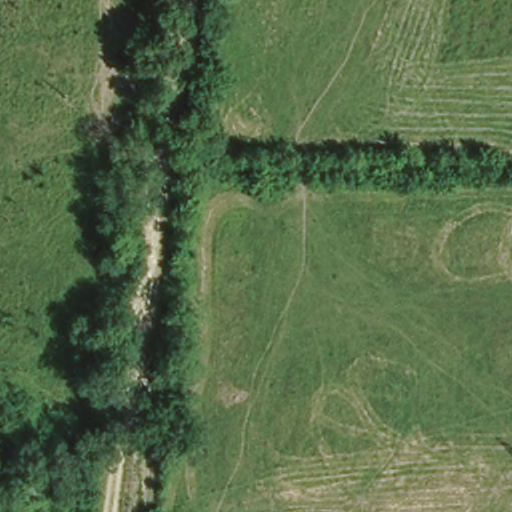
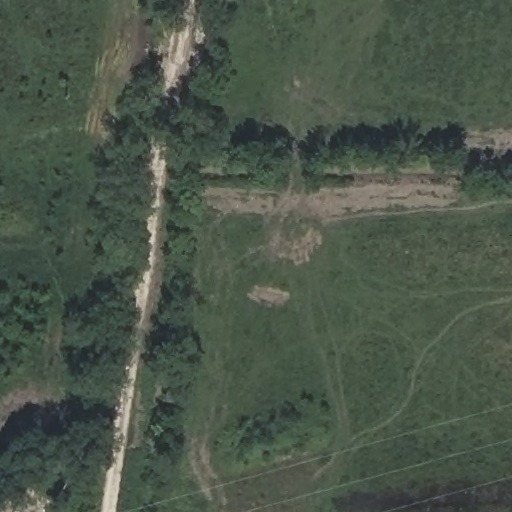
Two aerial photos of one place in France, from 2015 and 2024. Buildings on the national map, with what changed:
[]

